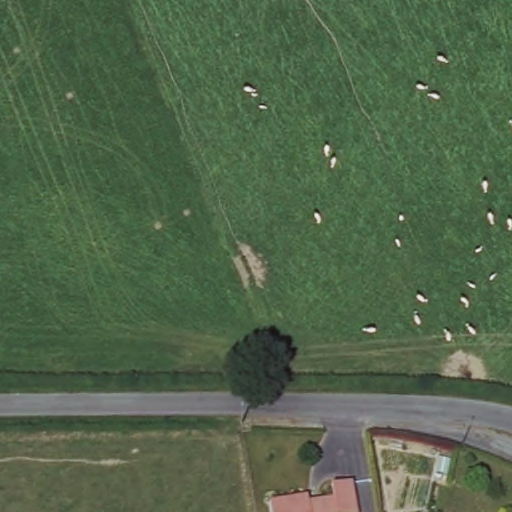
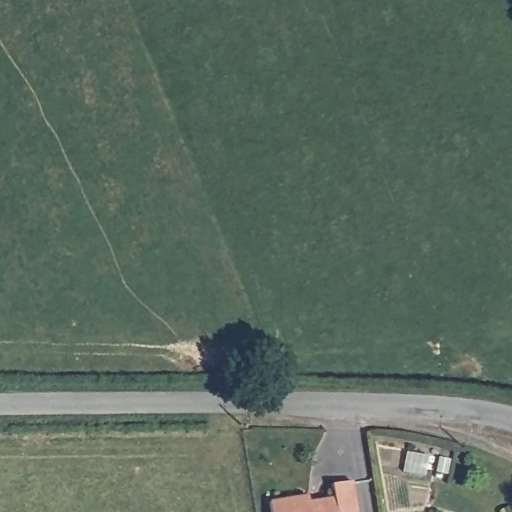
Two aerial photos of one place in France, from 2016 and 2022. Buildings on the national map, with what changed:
unchanged [(305,503),(329,500),(327,485),(349,482),(353,512),(270,512),(268,501),(304,496),(305,503)]

